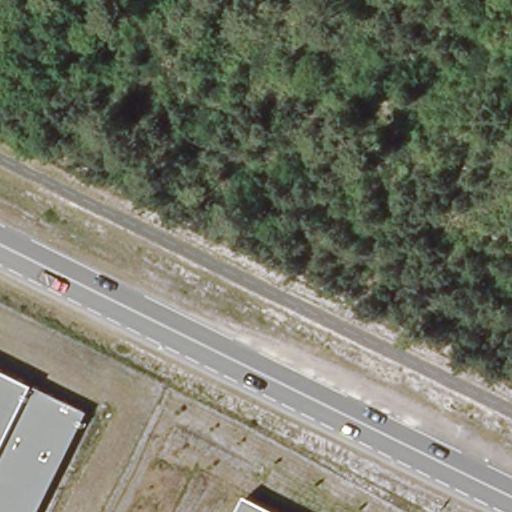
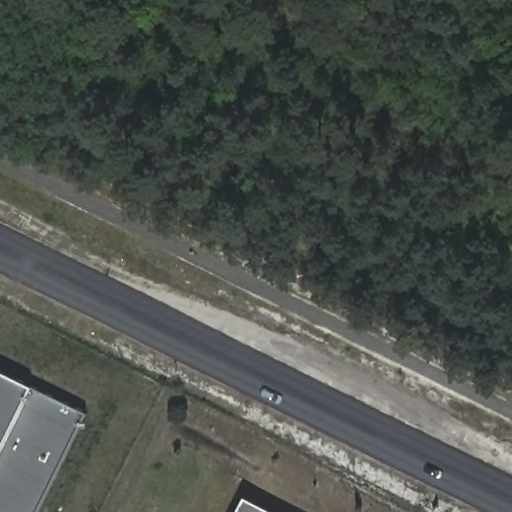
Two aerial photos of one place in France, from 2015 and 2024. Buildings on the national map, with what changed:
unchanged [(87,414),(39,512),(0,512),(0,371),(34,387),(87,414)]
unchanged [(275,512),(238,512),(246,497),(275,512)]

